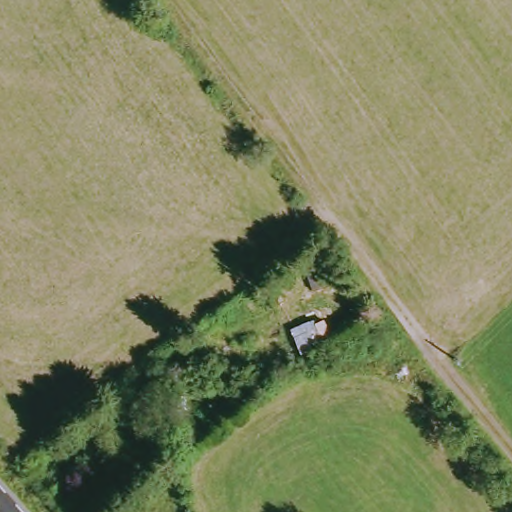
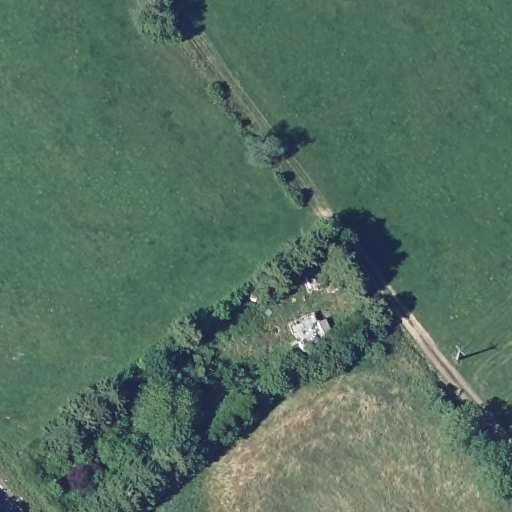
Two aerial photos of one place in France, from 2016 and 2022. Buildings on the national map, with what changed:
unchanged [(246,349),(235,348),(232,360),(215,360),(216,325),(250,326),(246,349)]

